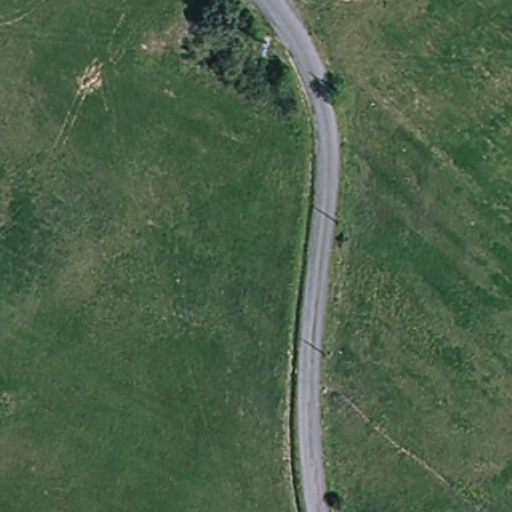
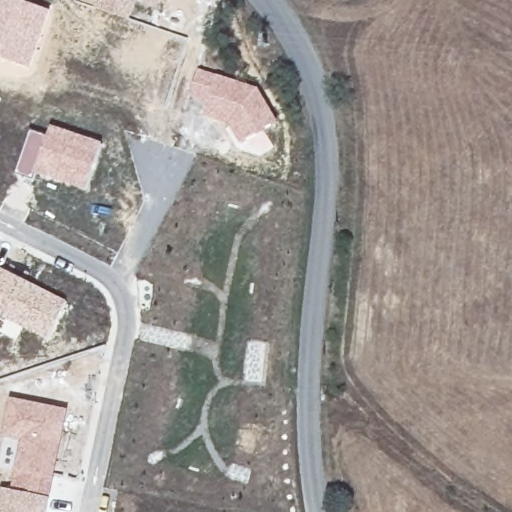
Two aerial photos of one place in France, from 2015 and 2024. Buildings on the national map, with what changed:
new [(0,59),(0,0),(20,0),(52,11),(31,69),(0,59)]
new [(137,1),(131,20),(98,8),(100,0),(163,0),(161,9),(137,1)]
new [(241,144),(228,123),(204,116),(208,103),(191,96),(199,69),(259,89),(279,122),(241,144)]
new [(87,189),(38,172),(35,181),(16,174),(32,130),(48,136),(52,125),(103,144),(87,189)]
new [(48,339),(0,316),(0,268),(67,302),(48,339)]
new [(22,441),(2,437),(11,397),(69,409),(50,498),(46,512),(0,512),(0,500),(3,488),(11,489),(22,441)]

